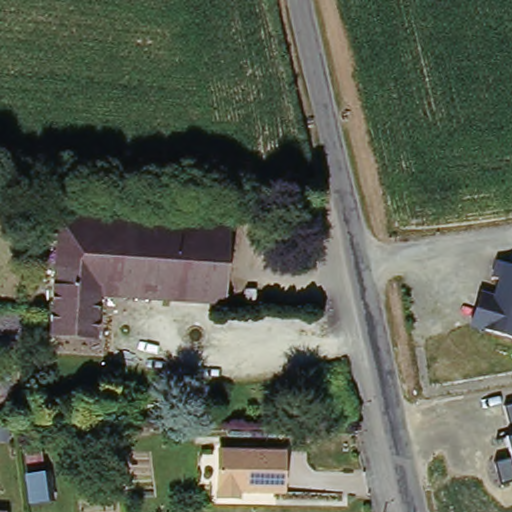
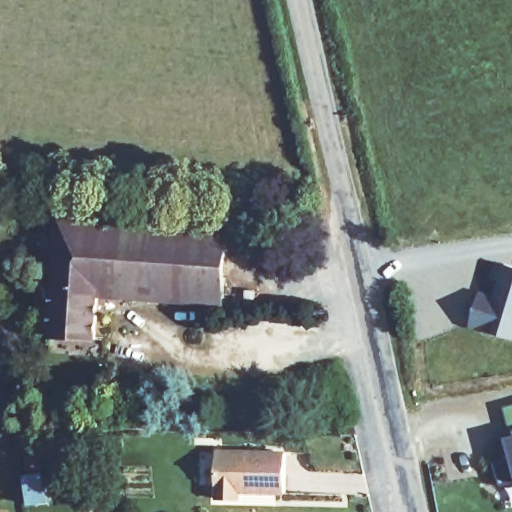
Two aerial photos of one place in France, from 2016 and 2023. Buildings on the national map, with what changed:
unchanged [(68,221),(237,229),(231,307),(106,300),(104,335),(61,333),(68,221)]
unchanged [(492,297),(504,262),(512,265),(512,341),(471,328),(482,293),(492,297)]
unchanged [(511,436),(502,407),(512,404),(512,458),(505,437),(511,436)]
unchanged [(290,457),(288,497),(243,497),(243,504),(221,505),(223,457),(290,457)]
unchanged [(494,463),(512,458),(512,481),(500,485),(494,463)]
unchanged [(29,477),(54,473),(59,505),(34,509),(29,477)]

